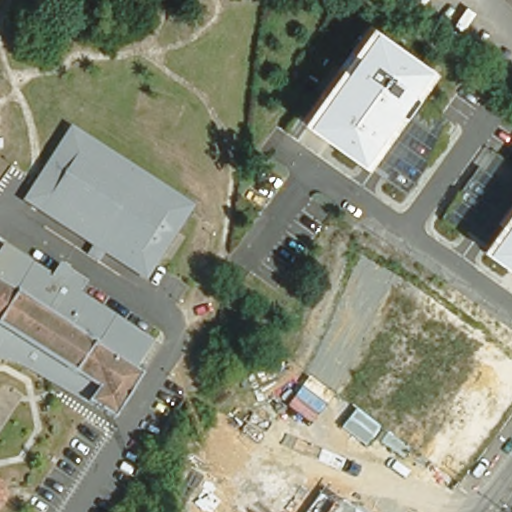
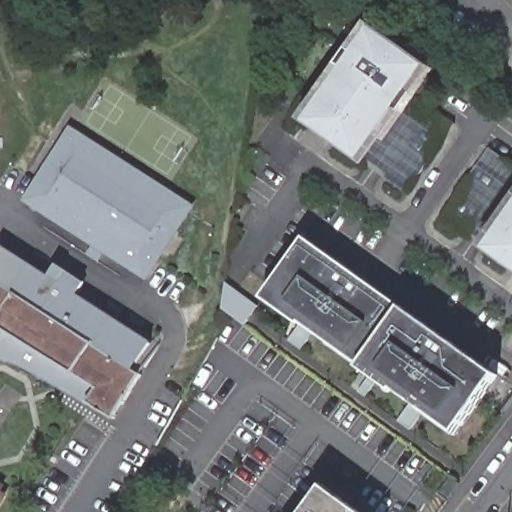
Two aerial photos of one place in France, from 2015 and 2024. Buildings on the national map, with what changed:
unchanged [(431,71),(361,164),(299,119),(368,25),(431,71)]
unchanged [(190,211),(146,281),(25,206),(70,137),(190,211)]
unchanged [(512,202),(512,271),(479,249),(512,202)]
new [(263,299),(307,237),(404,307),(359,368),(263,299)]
unchanged [(55,265),(82,282),(74,294),(148,340),(131,367),(139,372),(111,416),(85,399),(52,379),(26,363),(20,361),(13,358),(4,356),(0,356),(0,248),(48,278),(55,265)]
new [(404,307),(500,376),(455,438),(359,368),(404,307)]
unchanged [(0,485),(3,487),(0,491),(0,485)]
new [(325,487),(360,512),(306,512),(325,487)]

